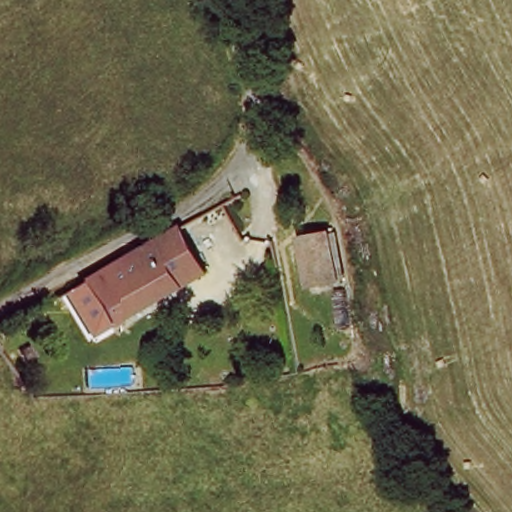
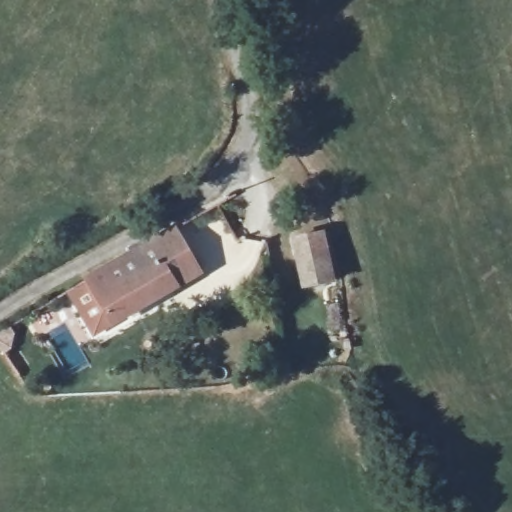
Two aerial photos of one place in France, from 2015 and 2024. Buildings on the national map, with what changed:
unchanged [(192,213),(218,254),(198,266),(173,225),(192,213)]
unchanged [(203,273),(117,327),(107,310),(88,279),(173,225),(198,266),(203,273)]
unchanged [(332,268),(340,303),(312,310),(300,260),(328,252),(332,268)]
unchanged [(107,310),(81,324),(65,295),(88,279),(107,310)]
unchanged [(112,390),(74,393),(72,374),(111,371),(112,390)]

